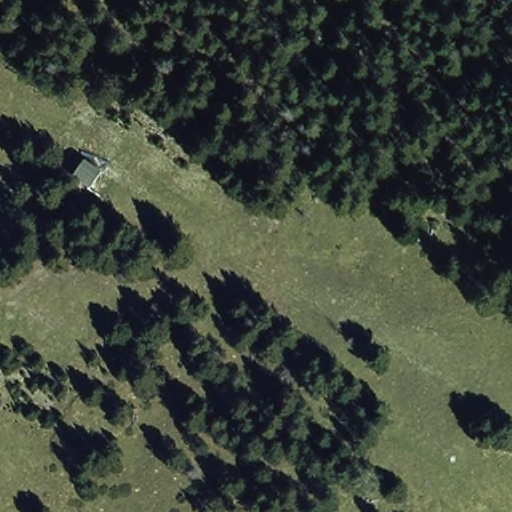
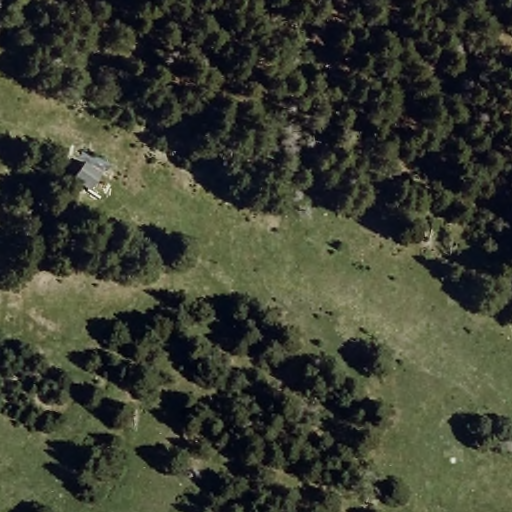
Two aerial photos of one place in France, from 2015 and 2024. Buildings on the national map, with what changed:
unchanged [(86,160),(104,175),(91,194),(68,182),(86,160)]

